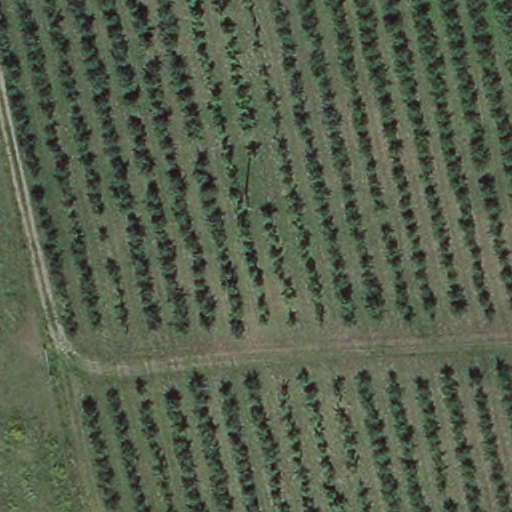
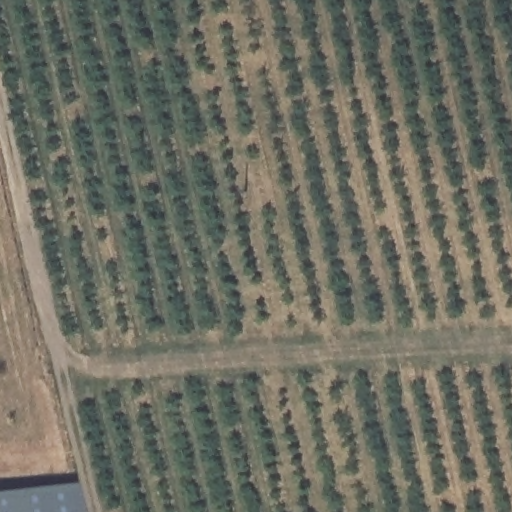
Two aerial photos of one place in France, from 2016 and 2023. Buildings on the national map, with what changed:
new [(78,512),(0,512),(0,496),(74,488),(78,512)]

